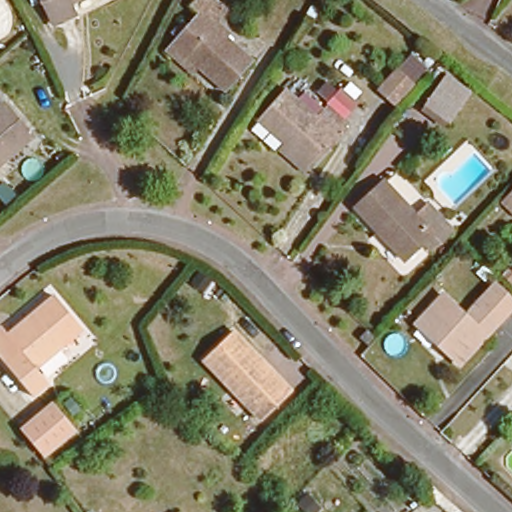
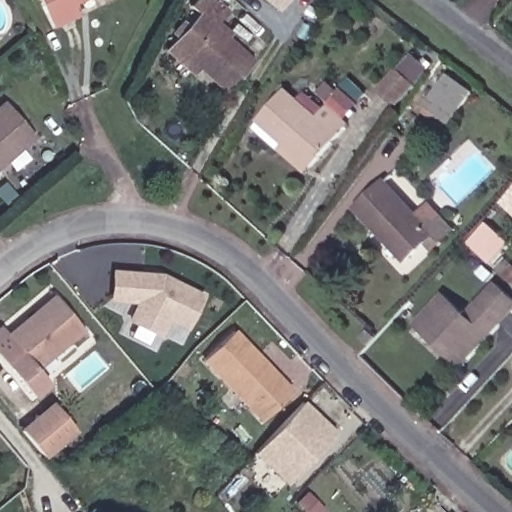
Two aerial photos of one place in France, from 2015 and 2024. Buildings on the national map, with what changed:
unchanged [(79,12),(52,24),(42,0),(74,0),(79,12)]
unchanged [(219,94),(175,45),(202,19),(194,10),(206,0),(212,0),(231,20),(216,33),(246,68),(219,94)]
new [(262,0),(288,0),(277,12),(262,0)]
unchanged [(390,102),(375,91),(392,65),(407,78),(390,102)]
unchanged [(447,126),(423,109),(448,75),(471,91),(447,126)]
unchanged [(276,149),(280,144),(256,124),(282,90),(315,116),(324,105),(346,124),(318,159),(307,174),(276,149)]
unchanged [(28,139),(0,162),(0,114),(6,109),(28,139)]
unchanged [(450,224),(430,247),(419,239),(402,257),(352,211),(376,183),(409,214),(422,199),(450,224)]
unchanged [(502,199),(512,189),(512,209),(502,199)]
new [(112,273),(159,276),(200,297),(184,327),(166,318),(158,334),(128,319),(137,301),(111,299),(112,273)]
unchanged [(459,365),(417,327),(446,296),(465,313),(477,301),(475,299),(490,280),(512,299),(512,307),(459,365)]
unchanged [(42,383),(28,396),(0,364),(0,332),(9,341),(61,295),(82,323),(31,368),(42,383)]
unchanged [(260,421),(203,360),(232,331),(291,390),(260,421)]
new [(335,432),(325,443),(290,479),(257,447),(302,401),(328,426),(335,432)]
unchanged [(22,434),(56,404),(76,429),(42,457),(22,434)]
unchanged [(176,512),(141,512),(162,494),(176,512)]

